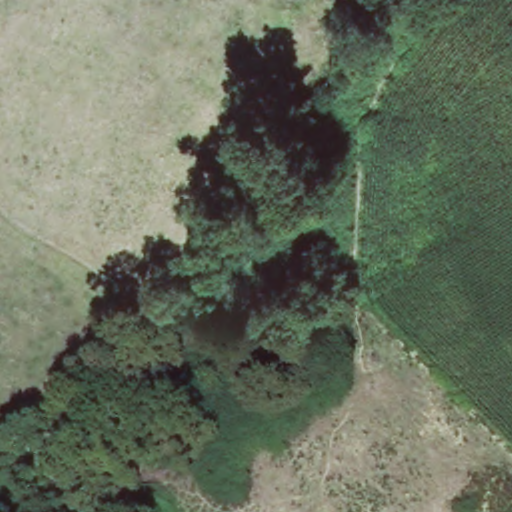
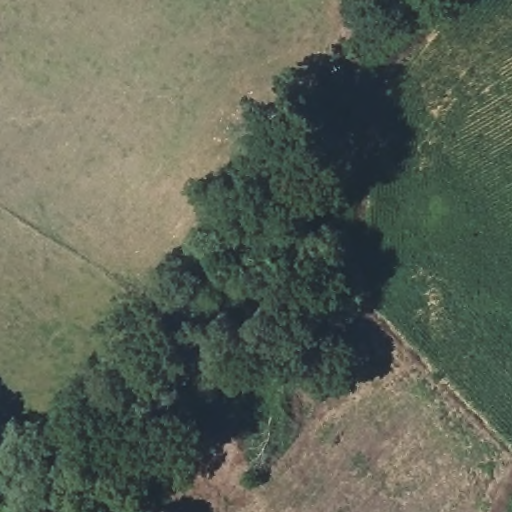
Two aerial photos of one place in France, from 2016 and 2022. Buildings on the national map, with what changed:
unchanged [(147,467),(124,491),(99,472),(114,446),(147,467)]

